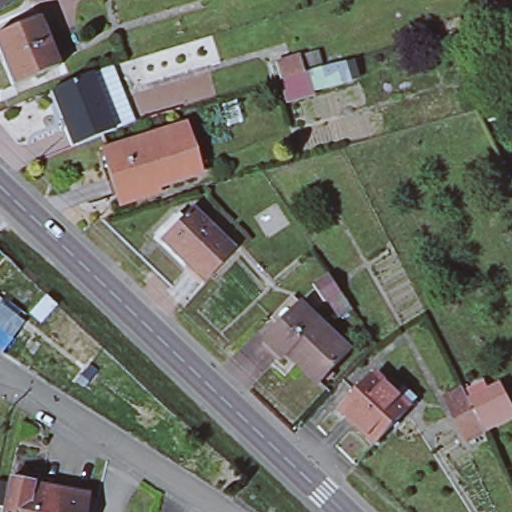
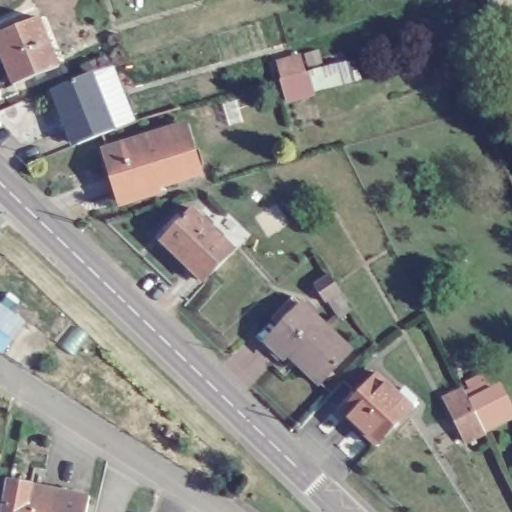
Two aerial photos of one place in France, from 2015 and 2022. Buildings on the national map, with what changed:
unchanged [(57,65),(12,83),(0,50),(0,32),(37,17),(57,65)]
unchanged [(300,42),(310,69),(355,56),(363,83),(287,105),(274,54),(300,42)]
unchanged [(90,71),(113,129),(76,143),(68,124),(65,126),(51,88),(90,71)]
unchanged [(183,125),(198,174),(155,187),(153,183),(120,192),(105,148),(183,125)]
unchanged [(190,208),(232,248),(202,279),(160,239),(190,208)]
unchanged [(329,273),(340,289),(323,300),(312,284),(329,273)]
unchanged [(348,350),(317,382),(287,352),(282,357),(264,339),(298,303),(348,350)]
unchanged [(9,338),(0,331),(0,312),(18,326),(9,338)]
unchanged [(375,372),(410,406),(374,443),(340,410),(375,372)]
unchanged [(463,387),(468,399),(502,381),(512,403),(512,423),(467,446),(444,397),(463,387)]
unchanged [(36,512),(1,512),(7,480),(41,486),(36,512)]
unchanged [(83,512),(36,512),(41,486),(87,495),(83,512)]

